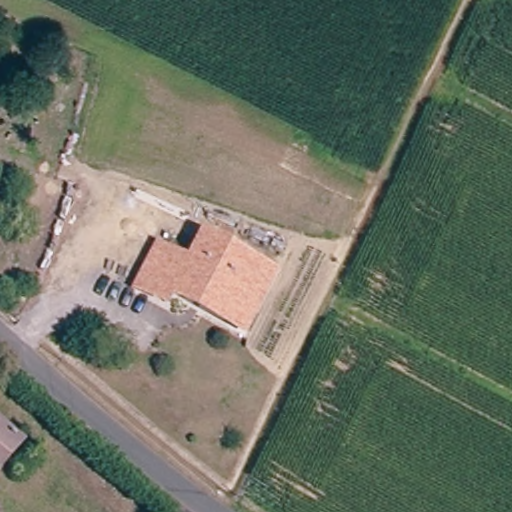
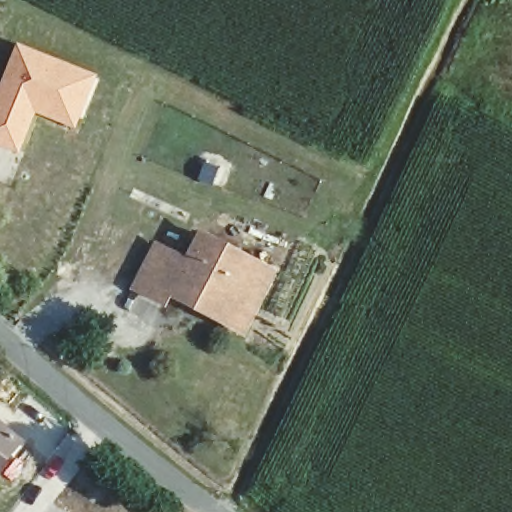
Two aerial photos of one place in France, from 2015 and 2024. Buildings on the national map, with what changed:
new [(98,75),(75,130),(36,115),(19,155),(0,147),(0,83),(16,42),(98,75)]
unchanged [(172,298),(163,313),(134,296),(158,252),(187,265),(196,247),(200,238),(261,268),(278,276),(273,287),(246,338),(227,328),(172,298)]
unchanged [(0,470),(0,430),(19,446),(0,470)]

